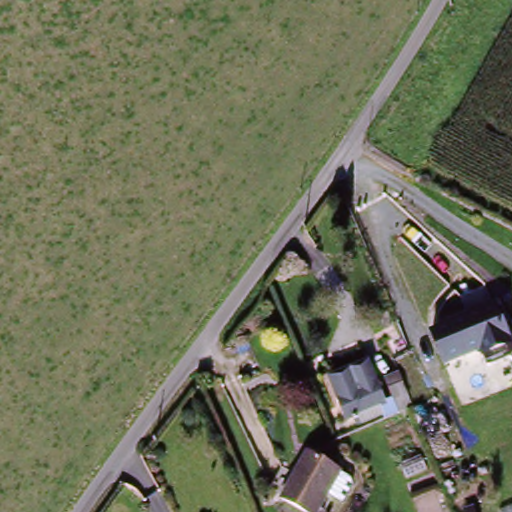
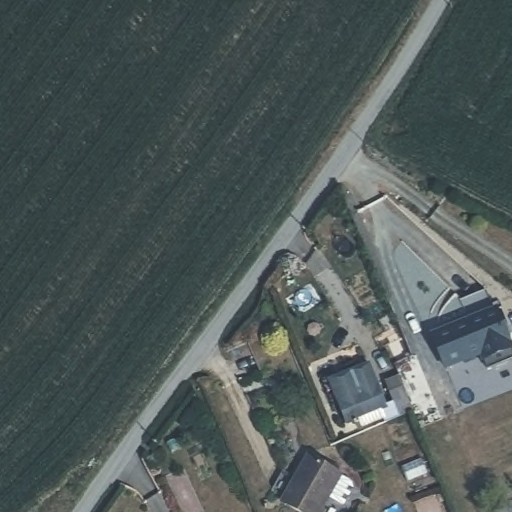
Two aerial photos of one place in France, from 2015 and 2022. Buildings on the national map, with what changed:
unchanged [(431,335),(498,308),(512,345),(512,361),(487,370),(481,358),(445,370),(431,335)]
unchanged [(349,416),(340,420),(325,380),(345,372),(370,362),(387,405),(393,402),(397,412),(379,420),(353,430),(349,416)]
unchanged [(397,412),(384,379),(399,372),(412,406),(397,412)]
unchanged [(301,460),(333,476),(314,512),(286,512),(276,507),(301,460)]

